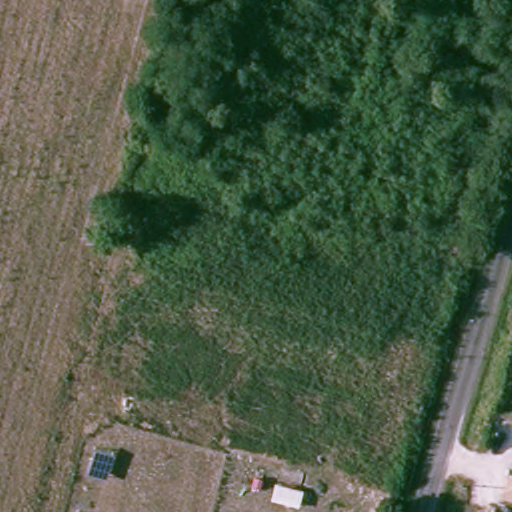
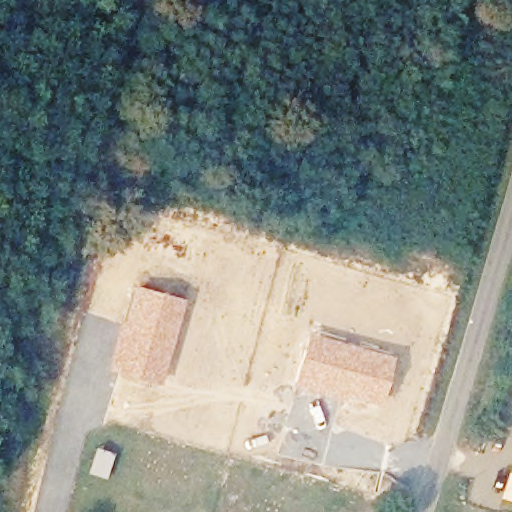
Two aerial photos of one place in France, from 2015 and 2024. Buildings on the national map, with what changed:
new [(132,284),(184,298),(159,385),(105,369),(132,284)]
new [(307,330),(393,355),(377,406),(292,387),(307,330)]
new [(94,446),(115,453),(105,479),(85,472),(94,446)]
unchanged [(512,480),(512,503),(506,501),(512,480)]

